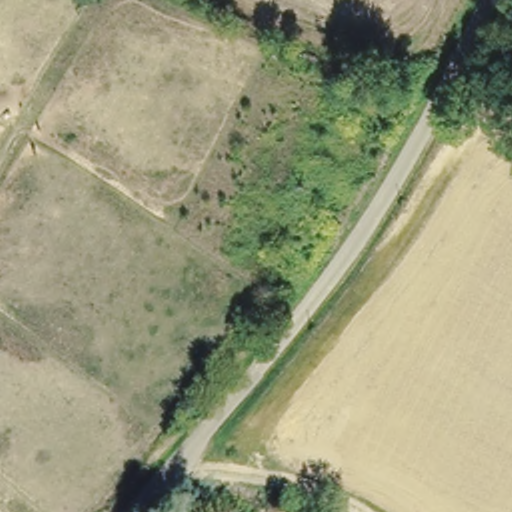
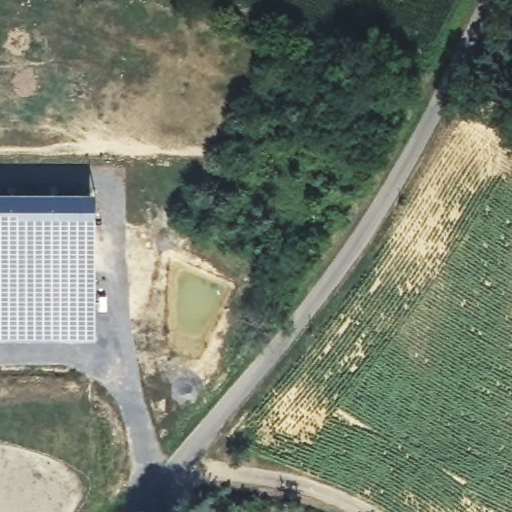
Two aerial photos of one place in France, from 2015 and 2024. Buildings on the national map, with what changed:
demolished [(266,204),(284,171),(307,184),(289,216),(266,204)]
new [(93,189),(93,336),(0,335),(0,189),(93,189)]

